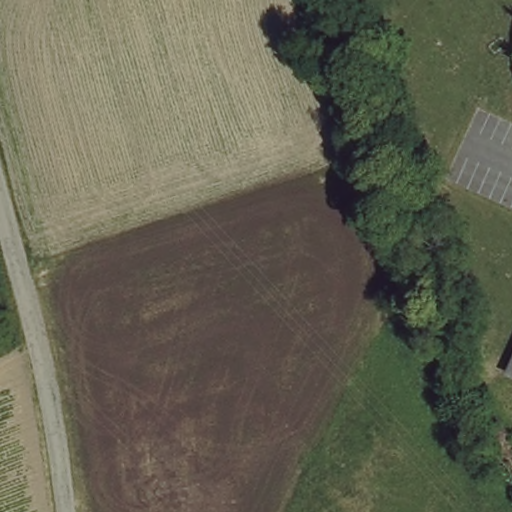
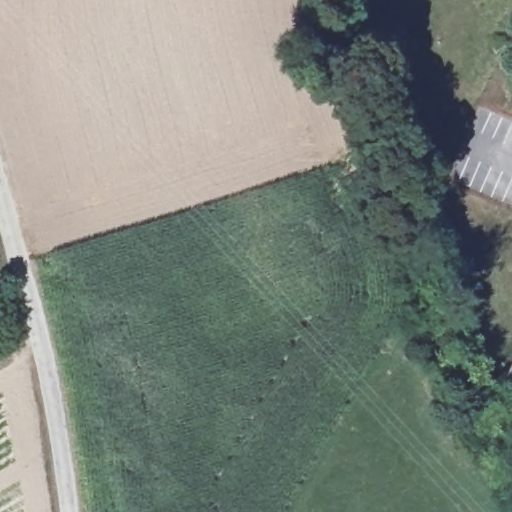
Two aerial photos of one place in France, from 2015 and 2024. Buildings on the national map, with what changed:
unchanged [(512,367),(512,373),(510,372),(512,367)]

